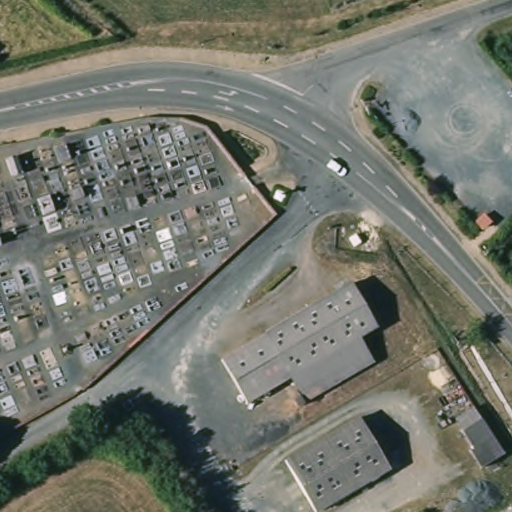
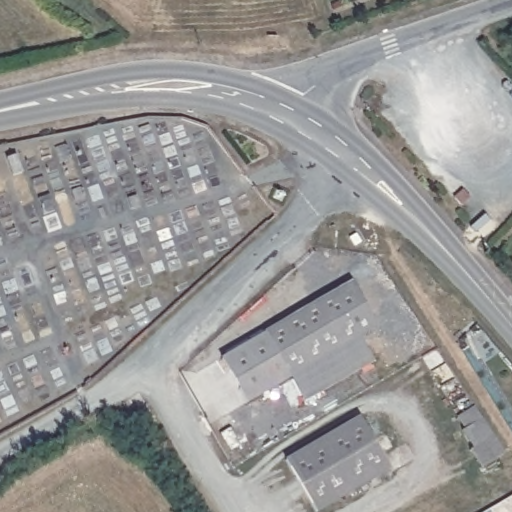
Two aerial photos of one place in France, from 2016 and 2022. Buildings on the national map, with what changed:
unchanged [(247,406),(222,362),(266,337),(349,291),(377,336),(361,344),(291,382),(247,406)]
unchanged [(373,366),(304,403),(291,382),(361,344),(373,366)]
unchanged [(498,450),(474,465),(451,430),(475,415),(498,450)]
unchanged [(321,512),(319,512),(287,462),(359,419),(391,471),(321,512)]

